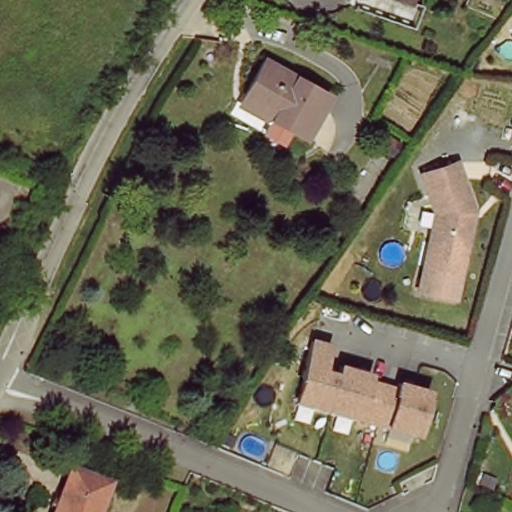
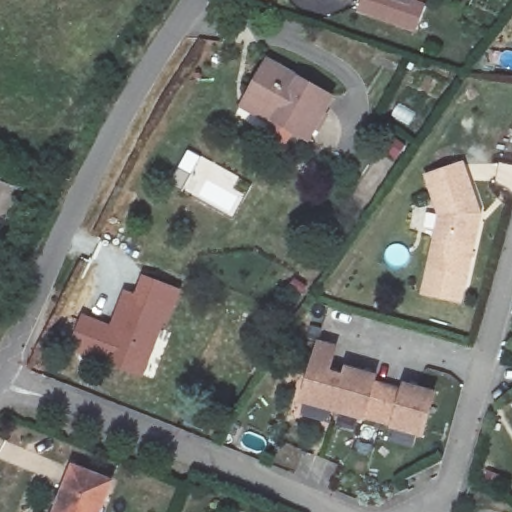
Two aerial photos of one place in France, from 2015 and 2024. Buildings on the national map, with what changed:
unchanged [(405,0),(416,0),(415,4),(405,0)]
unchanged [(253,105),(266,71),(336,95),(320,141),(306,136),(250,117),(253,105)]
unchanged [(473,174),(487,224),(469,287),(434,277),(446,237),(454,239),(458,224),(456,219),(450,220),(440,183),(473,174)]
new [(169,320),(165,318),(151,353),(138,347),(129,369),(76,348),(86,319),(115,331),(125,301),(134,305),(145,279),(180,292),(169,320)]
unchanged [(340,356),(331,380),(346,385),(349,379),(378,388),(376,394),(403,404),(405,397),(435,407),(421,448),(392,438),(393,436),(364,427),(363,429),(304,409),(323,351),(340,356)]
unchanged [(103,487),(94,512),(53,512),(69,473),(103,487)]

